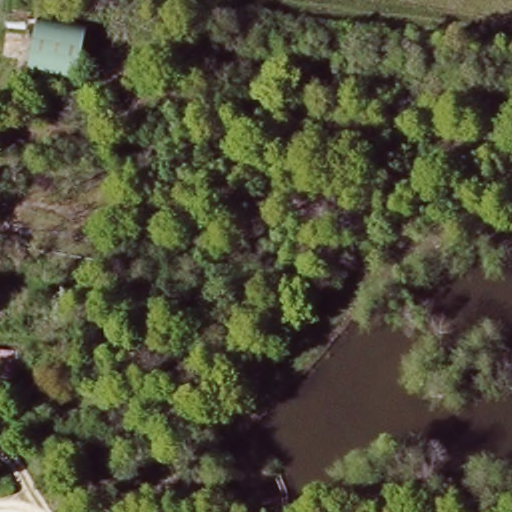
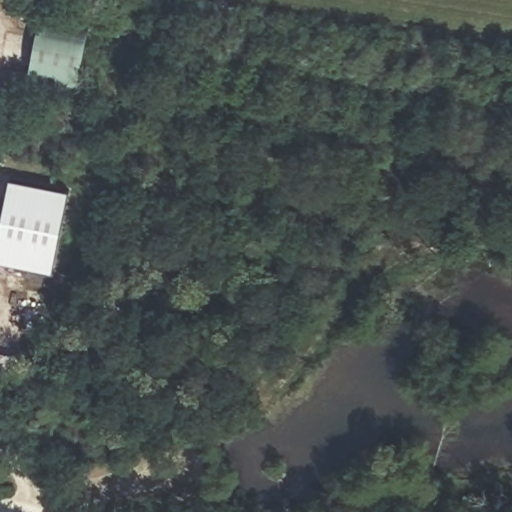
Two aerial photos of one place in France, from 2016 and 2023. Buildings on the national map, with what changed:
unchanged [(93,30),(81,95),(30,86),(42,22),(93,30)]
new [(53,271),(0,260),(0,223),(9,177),(68,189),(53,271)]

